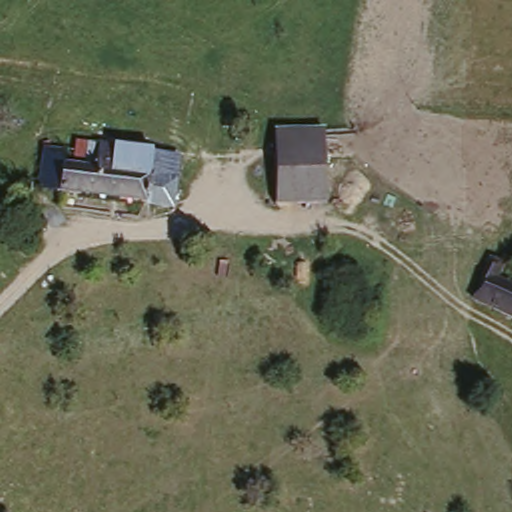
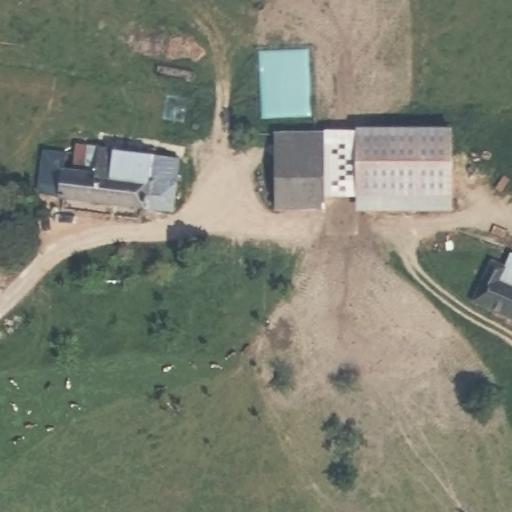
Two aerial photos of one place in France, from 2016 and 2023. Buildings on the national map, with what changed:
new [(451,129),(452,210),(353,212),(353,130),(451,129)]
unchanged [(272,136),(326,135),(328,209),(276,210),(272,136)]
unchanged [(87,180),(99,182),(104,146),(193,157),(190,186),(186,215),(85,202),(87,180)]
unchanged [(59,199),(65,157),(89,160),(87,180),(85,202),(59,199)]
unchanged [(470,304),(493,259),(510,266),(503,284),(512,287),(512,325),(470,304)]

